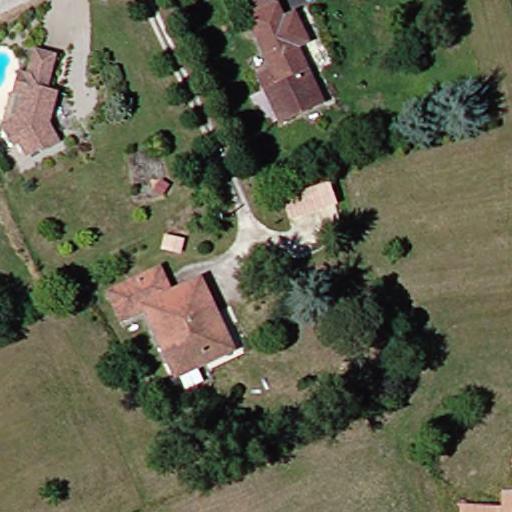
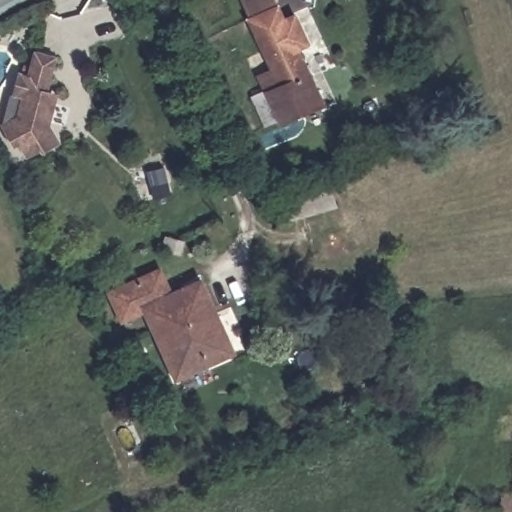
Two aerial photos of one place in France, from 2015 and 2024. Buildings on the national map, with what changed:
unchanged [(313,43),(303,48),(330,102),(285,122),(284,118),(270,124),(257,96),(271,90),(265,75),(278,69),(255,18),(246,0),(281,0),(283,5),(290,18),(300,14),(313,43)]
unchanged [(25,69),(35,71),(41,48),(64,53),(57,85),(66,92),(63,103),(59,124),(69,139),(51,150),(49,147),(35,156),(27,143),(22,145),(10,124),(13,122),(20,94),(25,69)]
unchanged [(206,279),(237,350),(182,376),(151,309),(129,319),(116,292),(165,269),(176,294),(206,279)]
unchanged [(469,506),(509,509),(509,494),(512,493),(512,512),(469,512),(469,506)]

